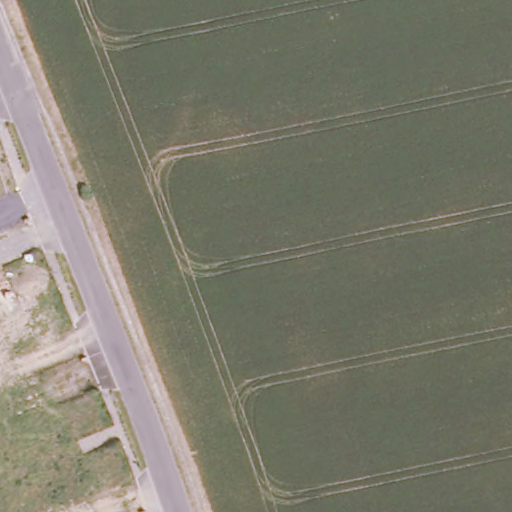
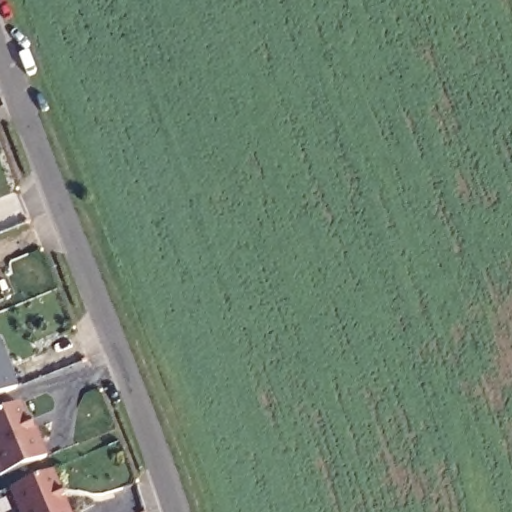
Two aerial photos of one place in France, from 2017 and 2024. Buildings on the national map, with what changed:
new [(0,391),(0,359),(12,387),(0,391)]
new [(25,429),(29,428),(41,456),(0,473),(0,408),(12,403),(25,429)]
new [(45,470),(63,512),(15,512),(4,486),(45,470)]

